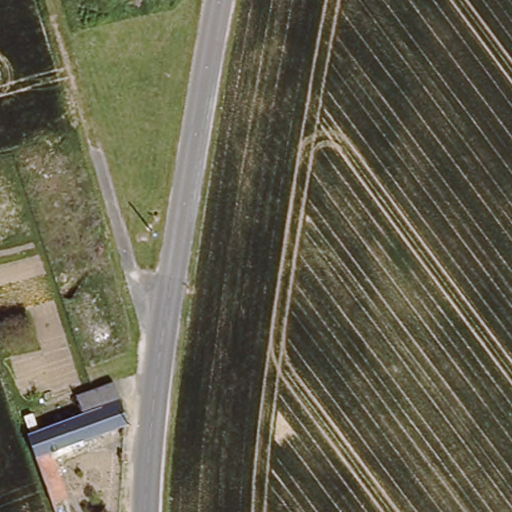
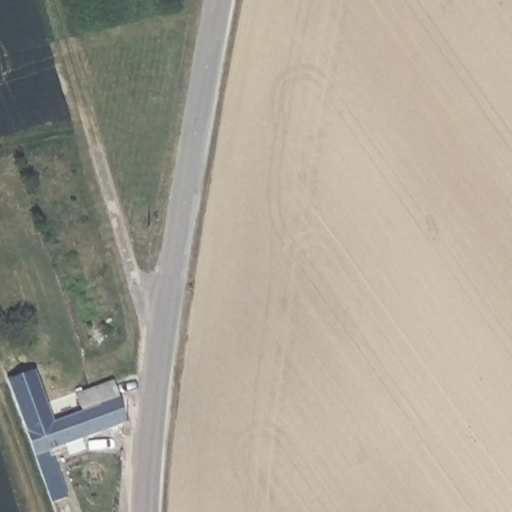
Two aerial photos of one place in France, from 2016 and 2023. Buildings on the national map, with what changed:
unchanged [(84,391),(110,384),(124,418),(123,421),(102,429),(46,451),(67,505),(50,512),(20,428),(87,402),(84,391)]

